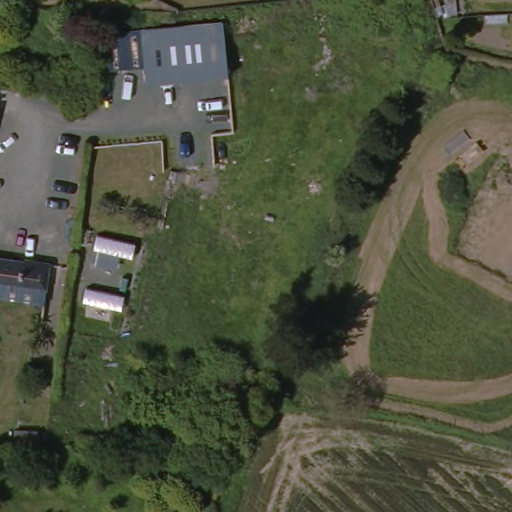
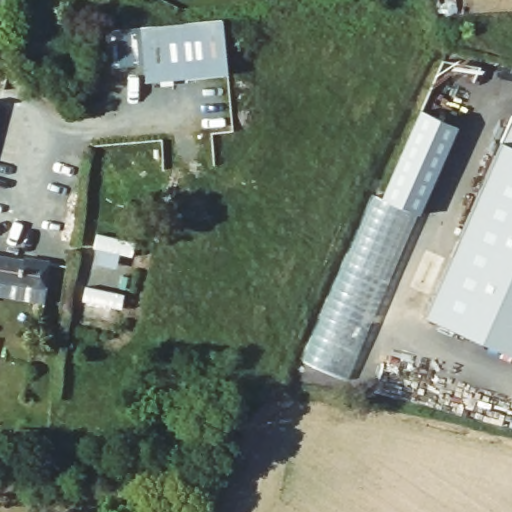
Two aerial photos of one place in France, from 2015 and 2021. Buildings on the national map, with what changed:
unchanged [(146,86),(142,33),(222,26),(226,78),(146,86)]
unchanged [(131,67),(104,62),(110,38),(135,42),(131,67)]
new [(420,215),(403,207),(383,199),(421,112),(458,128),(420,215)]
new [(512,121),(512,354),(426,316),(501,144),(512,121)]
new [(337,362),(310,351),(375,195),(383,199),(403,207),(337,362)]
unchanged [(19,262),(42,265),(42,266),(39,290),(31,288),(25,287),(15,287),(0,285),(0,260),(19,262)]
unchanged [(17,435),(17,422),(42,422),(41,435),(17,435)]

